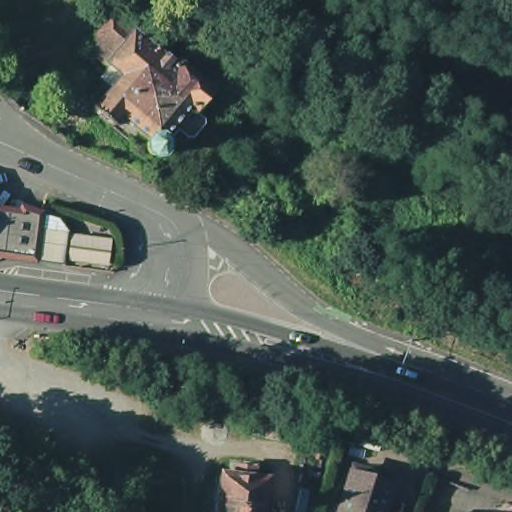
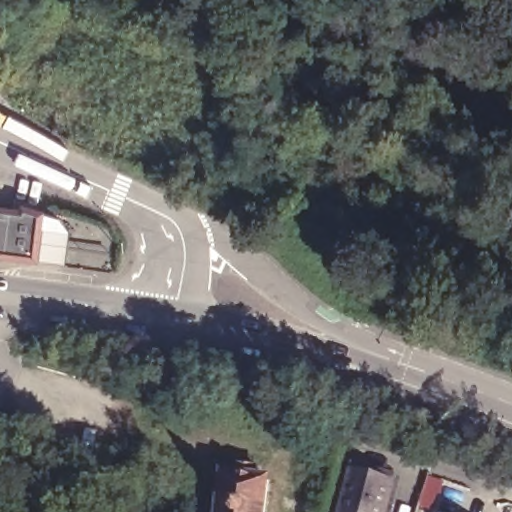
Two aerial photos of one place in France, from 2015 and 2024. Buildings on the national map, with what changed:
unchanged [(237,29),(203,0),(223,0),(244,18),(237,29)]
demolished [(160,149),(160,145),(159,141),(160,137),(132,114),(124,122),(104,107),(122,84),(111,75),(120,62),(117,60),(126,49),(105,32),(123,11),(185,61),(189,58),(221,85),(204,106),(200,102),(175,132),(180,140),(181,142),(180,147),(177,150),(173,152),(167,153),(164,151),(160,149)]
unchanged [(5,262),(0,262),(0,225),(10,226),(5,262)]
unchanged [(113,267),(24,254),(27,225),(114,242),(113,267)]
unchanged [(366,512),(341,505),(354,463),(395,476),(388,498),(384,512),(366,512)]
unchanged [(214,512),(217,483),(226,485),(227,473),(256,477),(255,488),(264,489),(261,512),(214,512)]
unchanged [(390,512),(384,512),(388,498),(394,500),(390,512)]
unchanged [(366,512),(339,512),(341,505),(366,512)]

